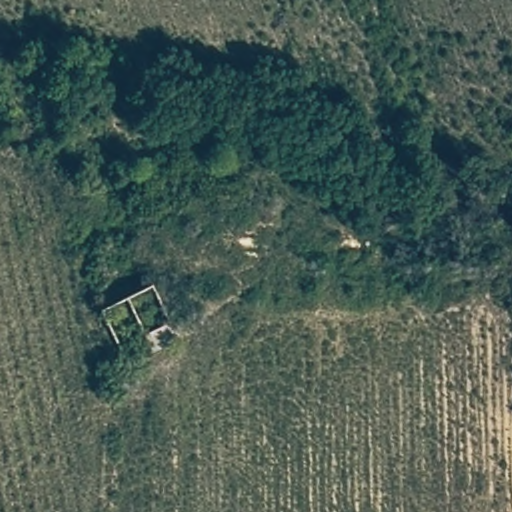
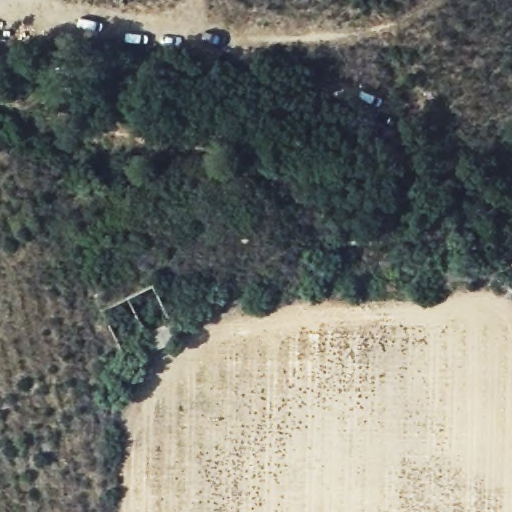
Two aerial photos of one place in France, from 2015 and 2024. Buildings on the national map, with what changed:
unchanged [(180,339),(152,353),(141,335),(168,321),(180,339)]

